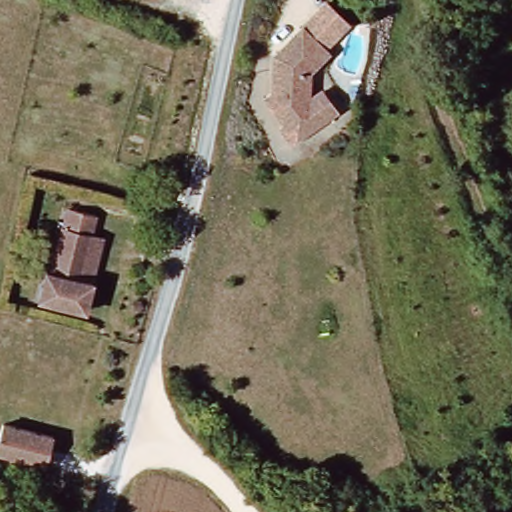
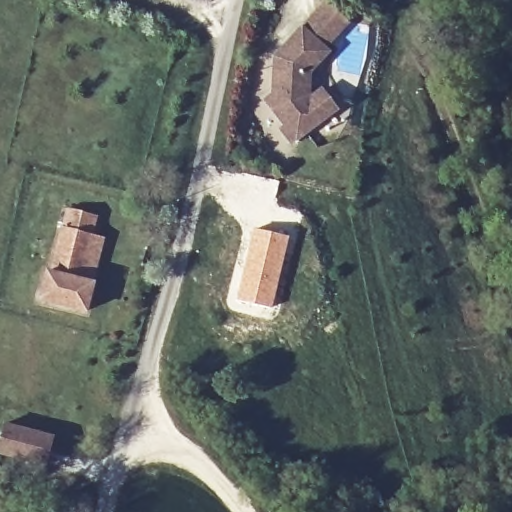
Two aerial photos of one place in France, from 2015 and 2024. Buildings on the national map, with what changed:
unchanged [(328,121),(295,144),(285,130),(290,126),(277,108),(284,97),(277,95),(282,57),(307,30),(322,40),(334,54),(315,73),(312,97),(315,99),(326,92),(341,112),(328,121)]
unchanged [(97,280),(89,307),(42,295),(50,270),(55,271),(74,207),(104,216),(86,276),(97,280)]
new [(251,228),(288,237),(271,308),(234,299),(251,228)]
unchanged [(0,450),(6,426),(55,437),(49,463),(0,452),(0,450)]

